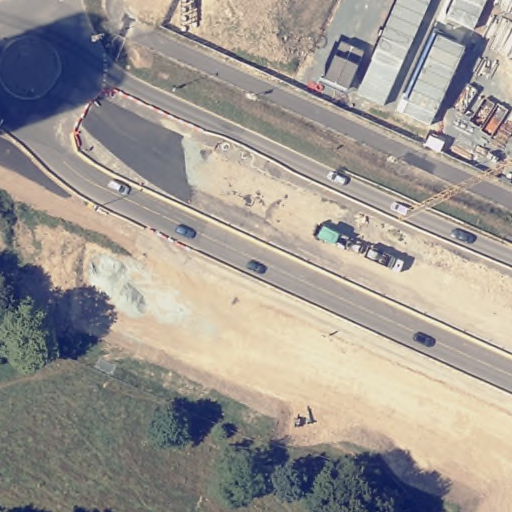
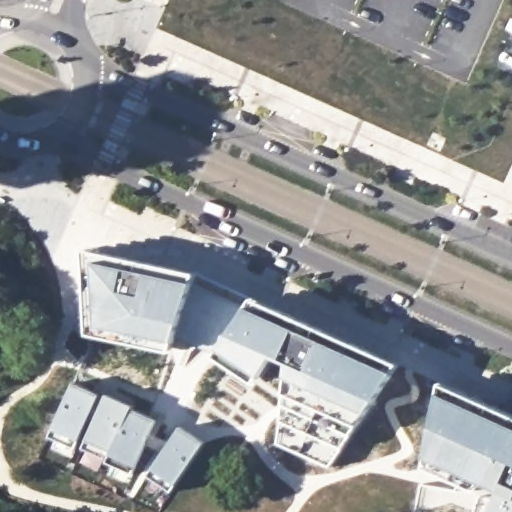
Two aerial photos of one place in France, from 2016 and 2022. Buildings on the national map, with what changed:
new [(327,466),(274,446),(280,401),(272,400),(276,372),(268,385),(252,386),(204,354),(207,347),(187,338),(180,362),(85,346),(76,344),(70,246),(82,241),(200,266),(204,282),(244,294),(297,312),(332,327),(395,355),(392,361),(405,368),(383,409),(430,427),(425,460),(420,470),(455,487),(456,493),(417,484),(413,505),(327,466)]
new [(71,382),(155,419),(134,472),(49,436),(71,382)]
new [(412,512),(413,505),(417,484),(456,493),(455,487),(420,470),(425,460),(430,427),(438,385),(512,417),(512,512),(412,512)]
new [(177,427),(204,444),(170,492),(145,476),(177,427)]

